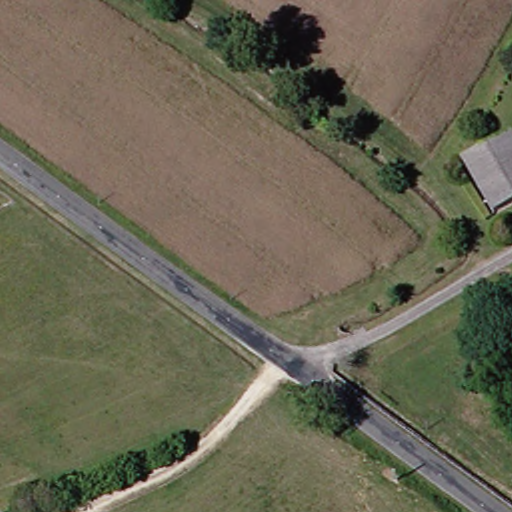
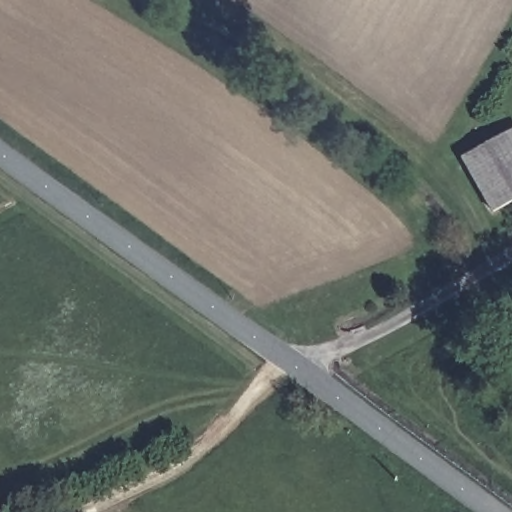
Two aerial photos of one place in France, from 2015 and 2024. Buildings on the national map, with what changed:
unchanged [(467,160),(511,134),(512,135),(512,198),(495,207),(467,160)]

